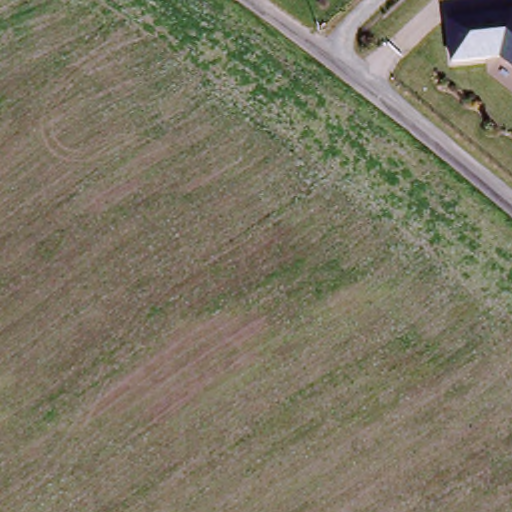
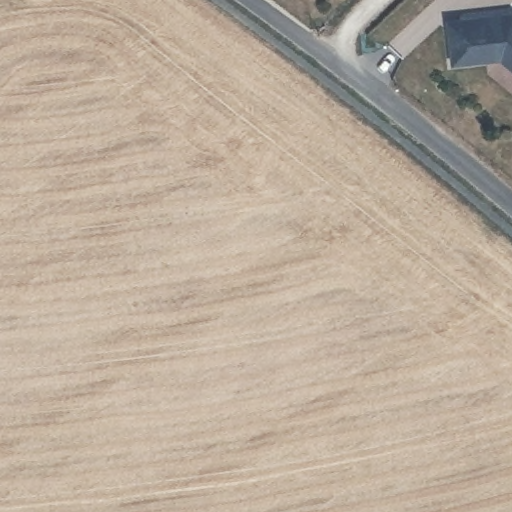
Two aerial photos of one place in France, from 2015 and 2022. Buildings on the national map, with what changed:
unchanged [(497,21),(507,20),(507,16),(512,15),(512,64),(506,60),(458,67),(452,25),(497,17),(497,21)]

